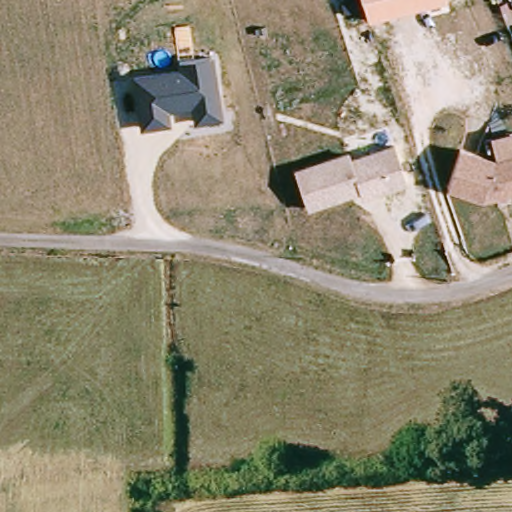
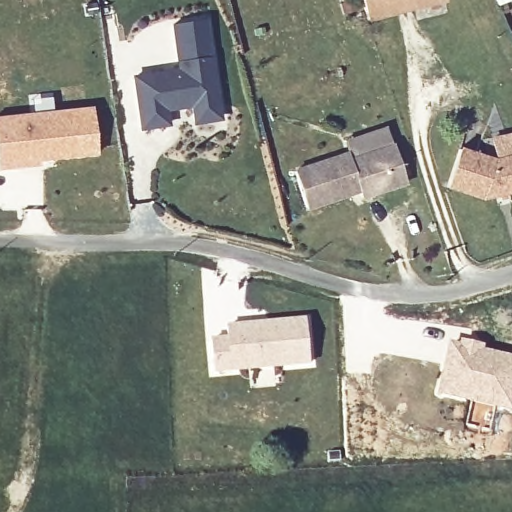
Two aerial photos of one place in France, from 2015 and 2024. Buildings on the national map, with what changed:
unchanged [(446,3),(367,22),(361,0),(445,0),(446,3)]
unchanged [(225,120),(194,126),(191,108),(169,111),(171,124),(139,130),(132,74),(180,66),(179,60),(212,53),(225,120)]
new [(28,94),(51,92),(53,109),(93,105),(98,155),(0,170),(0,114),(30,111),(28,94)]
unchanged [(496,157),(490,137),(512,132),(512,193),(483,201),(446,191),(460,147),(496,157)]
unchanged [(350,158),(395,144),(409,185),(365,200),(362,192),(308,208),(294,166),(347,150),(350,158)]
new [(210,339),(228,336),(227,325),(304,318),(310,363),(214,374),(210,339)]
new [(459,345),(460,340),(483,346),(483,350),(512,357),(512,413),(436,395),(448,342),(459,345)]

